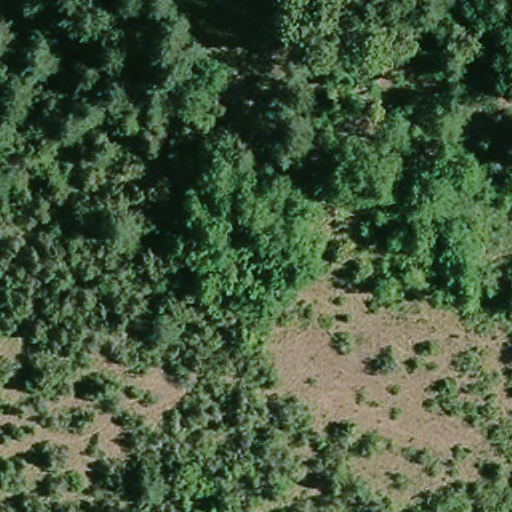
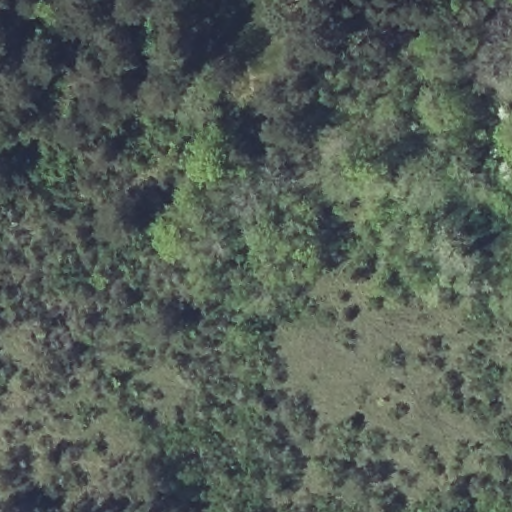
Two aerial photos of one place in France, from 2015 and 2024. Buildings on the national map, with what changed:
[]

